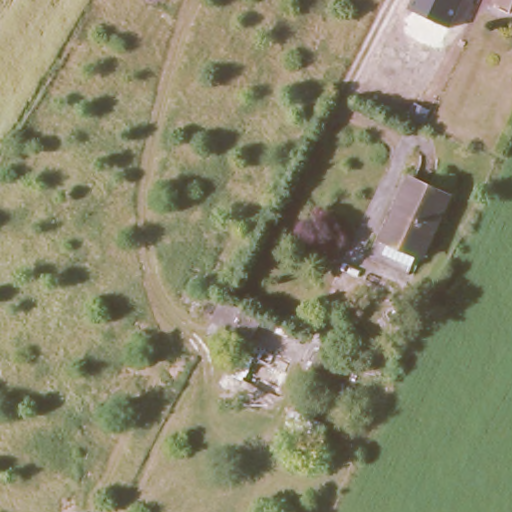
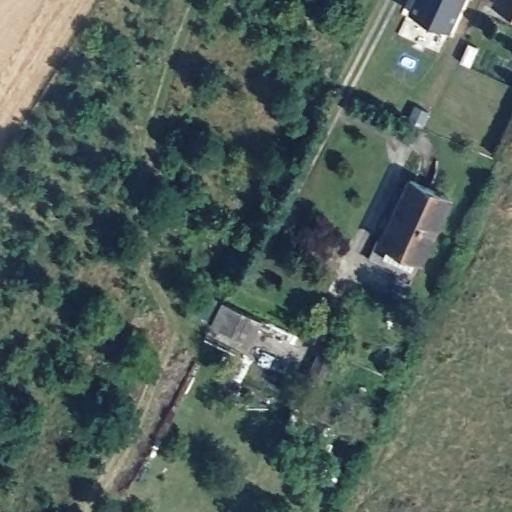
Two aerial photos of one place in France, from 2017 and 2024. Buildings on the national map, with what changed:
unchanged [(463,0),(450,29),(408,9),(413,0),(463,0)]
unchanged [(498,2),(499,0),(512,0),(512,8),(498,2)]
unchanged [(424,254),(420,252),(414,263),(386,250),(391,239),(385,236),(414,175),(452,194),(424,254)]
unchanged [(268,315),(255,341),(217,322),(230,296),(268,315)]

